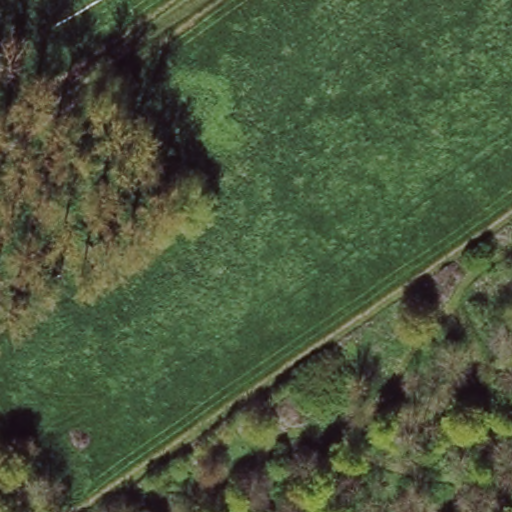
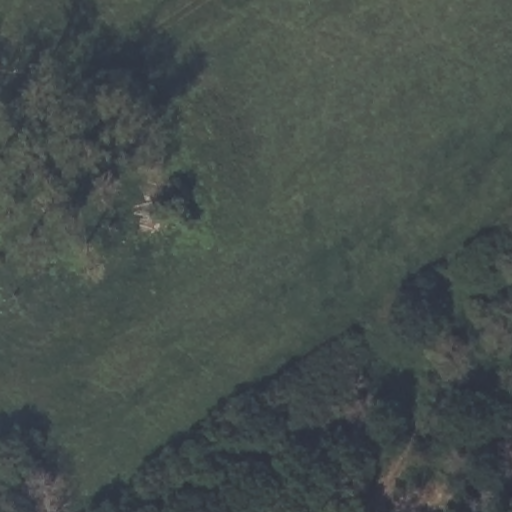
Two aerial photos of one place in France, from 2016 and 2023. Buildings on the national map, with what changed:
[]

